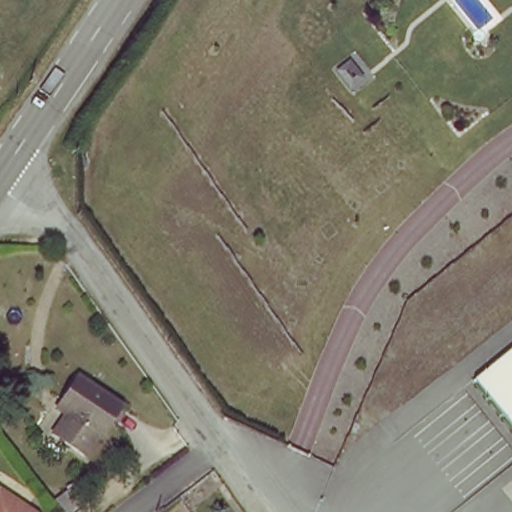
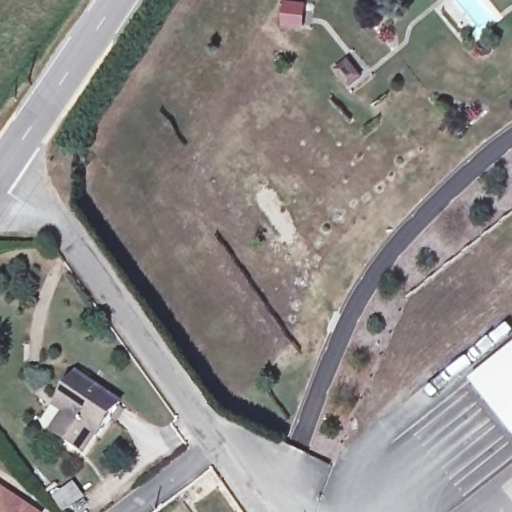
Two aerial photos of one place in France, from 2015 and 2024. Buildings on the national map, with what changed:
unchanged [(512,348),(512,431),(471,381),(512,348)]
unchanged [(121,410),(83,460),(52,440),(65,421),(53,412),(57,405),(76,379),(121,410)]
unchanged [(71,487),(80,499),(64,510),(61,512),(60,512),(51,501),(55,498),(71,487)]
unchanged [(28,510),(27,512),(0,512),(0,490),(28,510)]

